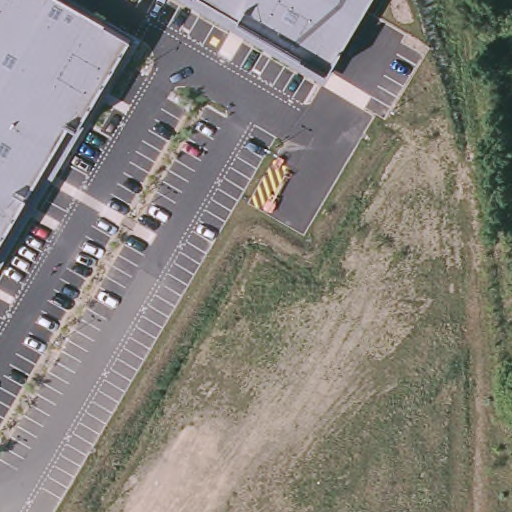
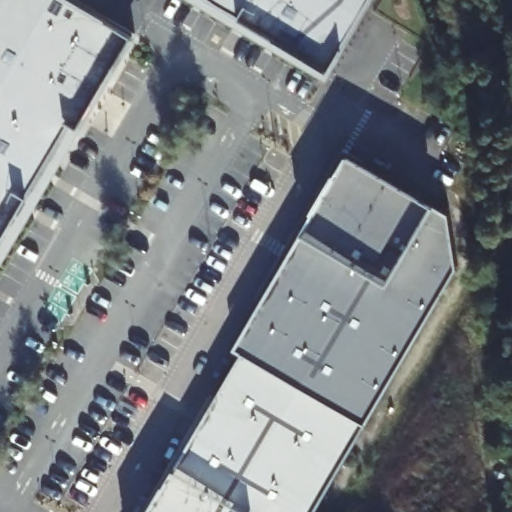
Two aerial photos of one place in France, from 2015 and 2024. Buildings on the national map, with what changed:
unchanged [(0,270),(0,0),(74,0),(137,36),(0,270)]
unchanged [(331,71),(210,0),(372,0),(331,71)]
new [(447,217),(452,278),(315,512),(148,512),(345,158),(447,217)]

